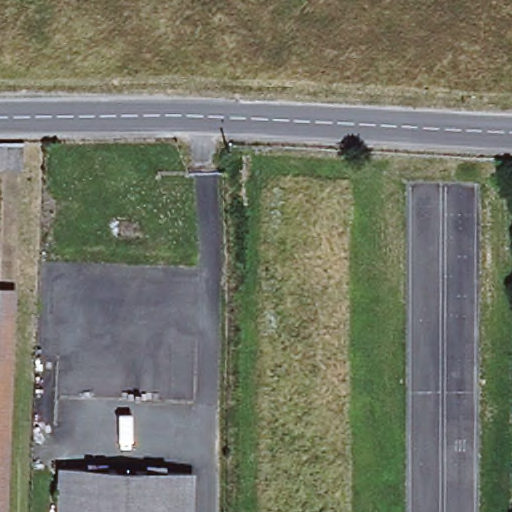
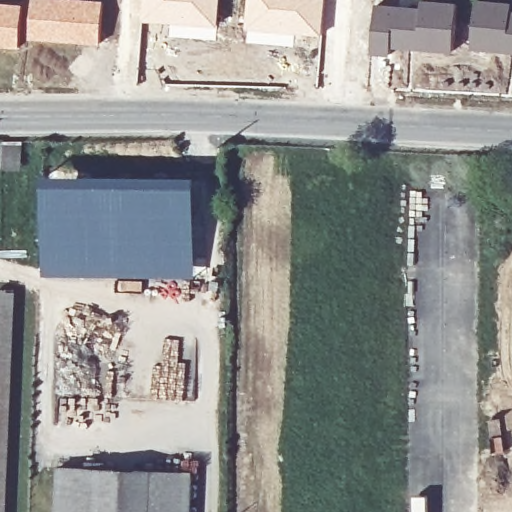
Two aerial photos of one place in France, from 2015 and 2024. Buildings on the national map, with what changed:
new [(33,0),(105,0),(100,45),(30,38),(33,0)]
new [(144,0),(221,0),(217,40),(170,35),(171,23),(142,21),(144,0)]
new [(249,0),(327,0),(323,36),(295,33),(294,46),(246,42),(249,0)]
new [(376,3),(421,5),(421,0),(427,0),(459,2),(454,52),(393,49),(392,54),(372,53),(376,3)]
new [(475,0),(483,0),(512,2),(512,55),(471,49),(475,0)]
new [(19,48),(0,46),(0,2),(24,3),(19,48)]
unchanged [(0,162),(0,141),(21,142),(21,161),(0,162)]
new [(44,182),(50,182),(49,176),(58,174),(199,175),(196,278),(143,277),(143,282),(93,277),(43,276),(44,182)]
unchanged [(9,512),(0,512),(0,282),(19,283),(9,512)]
unchanged [(62,512),(64,466),(193,472),(191,512),(62,512)]

